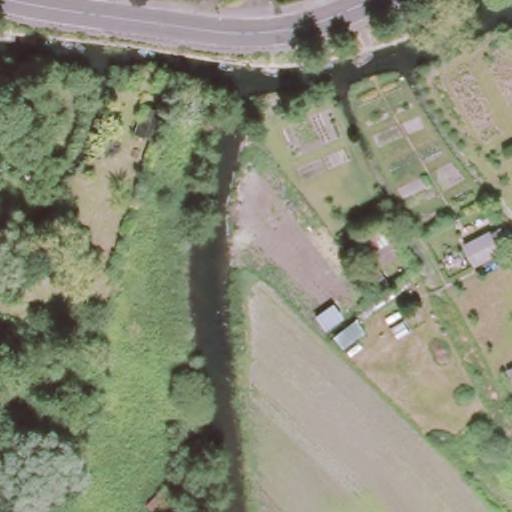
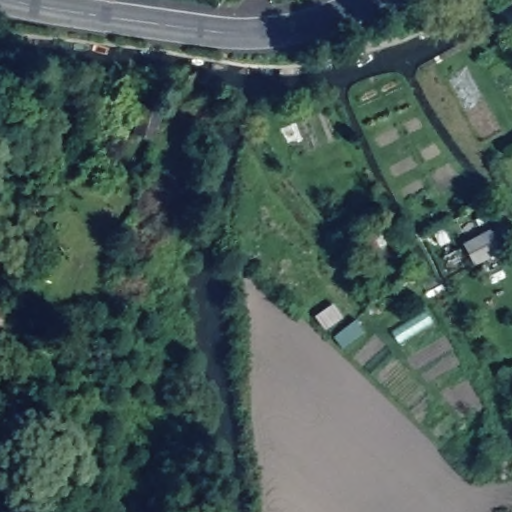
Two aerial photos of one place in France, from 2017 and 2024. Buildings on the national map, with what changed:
unchanged [(142,101),(158,107),(150,135),(133,129),(142,101)]
unchanged [(353,233),(360,227),(367,235),(360,242),(353,233)]
unchanged [(467,251),(472,247),(489,236),(500,256),(490,262),(485,254),(477,259),(472,262),(467,251)]
unchanged [(350,243),(357,251),(350,256),(344,248),(350,243)]
unchanged [(330,305),(340,318),(325,330),(315,317),(330,305)]
unchanged [(512,371),(512,377),(509,373),(512,371)]
unchanged [(199,438),(197,459),(175,457),(177,436),(199,438)]
unchanged [(198,512),(173,512),(157,501),(165,490),(198,512)]

